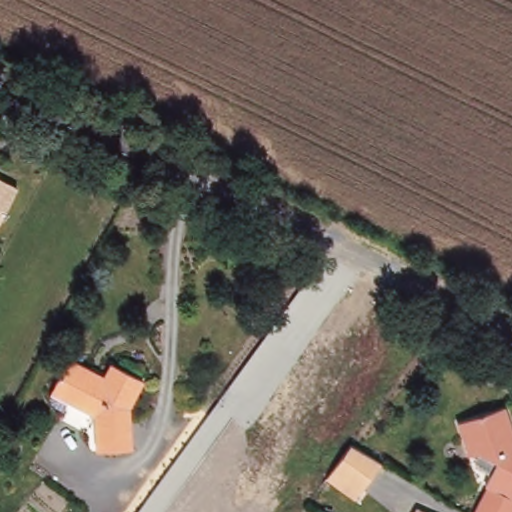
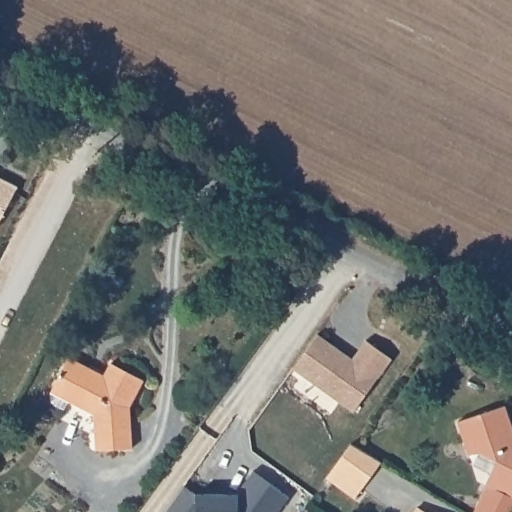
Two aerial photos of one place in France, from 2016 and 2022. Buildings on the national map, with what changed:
unchanged [(16,187),(0,219),(0,180),(16,187)]
new [(292,370),(316,336),(351,361),(365,342),(390,361),(352,414),(338,404),(320,391),(292,370)]
unchanged [(143,380),(129,408),(130,421),(131,448),(96,450),(94,415),(51,393),(70,358),(88,367),(104,376),(110,363),(143,380)]
unchanged [(497,462),(480,452),(470,455),(459,422),(505,407),(512,427),(512,499),(485,485),(497,462)]
unchanged [(379,461),(356,499),(325,480),(351,444),(379,461)]
new [(196,495),(224,495),(232,501),(253,472),(289,498),(279,512),(166,512),(184,486),(196,495)]
unchanged [(423,512),(415,512),(417,508),(423,512)]

